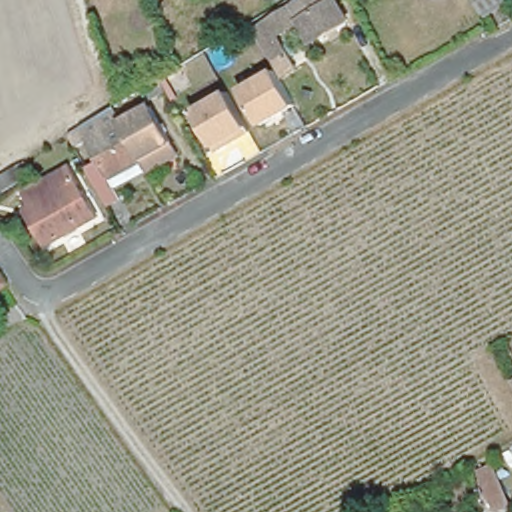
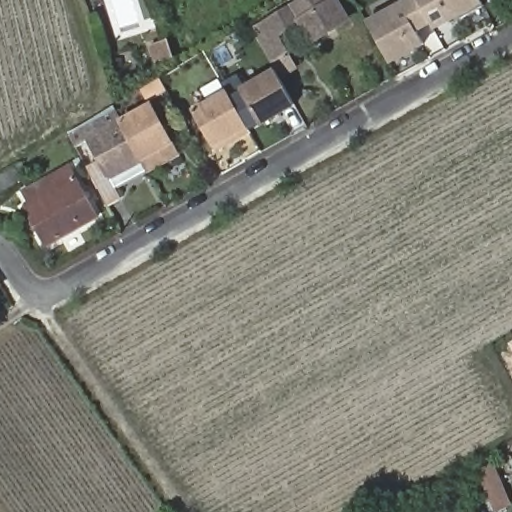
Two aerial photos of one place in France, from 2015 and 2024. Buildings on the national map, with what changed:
unchanged [(306,0),(330,0),(332,2),(345,25),(307,49),(293,26),(271,39),(281,55),(268,63),(250,33),(306,0)]
new [(419,33),(426,46),(391,66),(367,21),(405,0),(479,0),(482,7),(436,31),(432,25),(419,33)]
demolished [(480,12),(474,0),(502,0),(480,12)]
unchanged [(297,108),(261,128),(239,87),(275,69),(297,108)]
unchanged [(180,70),(187,82),(175,89),(168,76),(180,70)]
unchanged [(159,73),(166,85),(146,97),(139,86),(159,73)]
unchanged [(213,150),(191,110),(229,90),(250,131),(213,150)]
unchanged [(149,102),(175,148),(145,166),(119,119),(149,102)]
unchanged [(87,163),(99,156),(80,122),(110,103),(119,119),(145,166),(114,183),(120,193),(109,200),(107,197),(87,163)]
unchanged [(22,180),(0,192),(0,176),(14,167),(22,180)]
unchanged [(35,205),(26,191),(68,167),(96,218),(48,245),(38,228),(28,209),(35,205)]
unchanged [(4,292),(0,295),(0,287),(4,292)]
new [(512,345),(511,344),(512,344),(512,345)]
new [(512,359),(512,361),(511,359),(512,359)]
unchanged [(492,464),(509,502),(497,507),(480,468),(492,464)]
unchanged [(447,481),(462,473),(470,487),(455,496),(447,481)]

